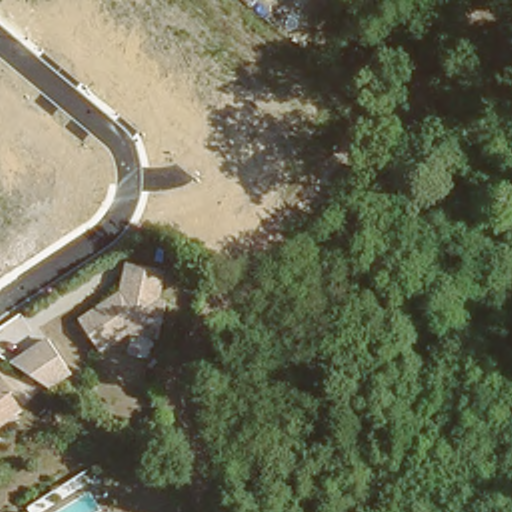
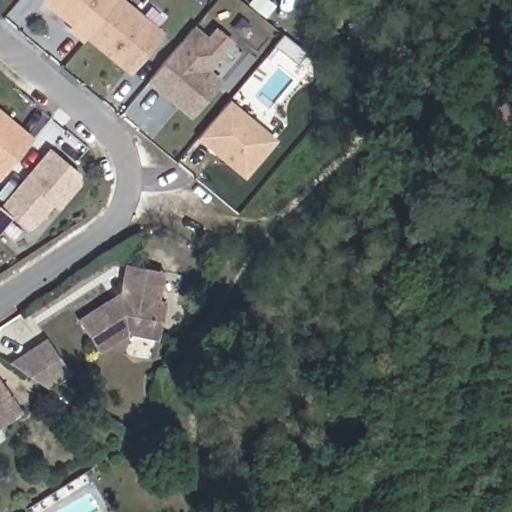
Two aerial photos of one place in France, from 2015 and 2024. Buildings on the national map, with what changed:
new [(129,75),(86,39),(82,43),(66,29),(69,25),(40,1),(41,0),(124,0),(162,32),(129,75)]
new [(211,70),(222,80),(190,120),(146,82),(193,25),(207,36),(215,26),(234,41),(211,70)]
new [(244,180),(196,139),(229,99),(276,139),(244,180)]
new [(34,139),(0,179),(0,110),(34,139)]
new [(53,205),(37,226),(26,231),(10,217),(0,231),(0,206),(49,148),(78,172),(79,185),(58,210),(53,205)]
unchanged [(164,309),(158,345),(127,340),(98,359),(75,327),(108,305),(119,297),(122,270),(162,279),(159,293),(156,306),(164,309)]
unchanged [(72,376),(49,390),(10,360),(48,337),(72,376)]
unchanged [(10,418),(0,425),(0,401),(10,418)]

